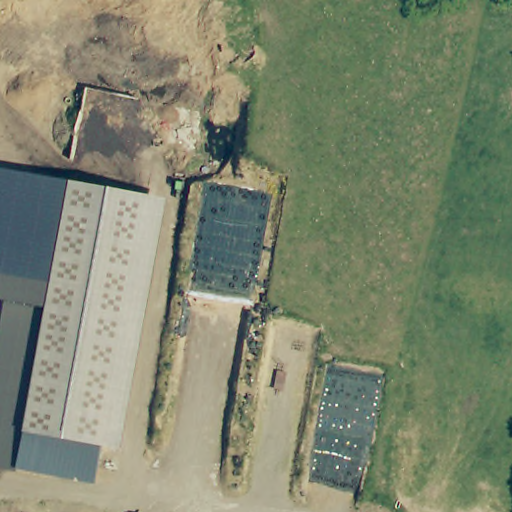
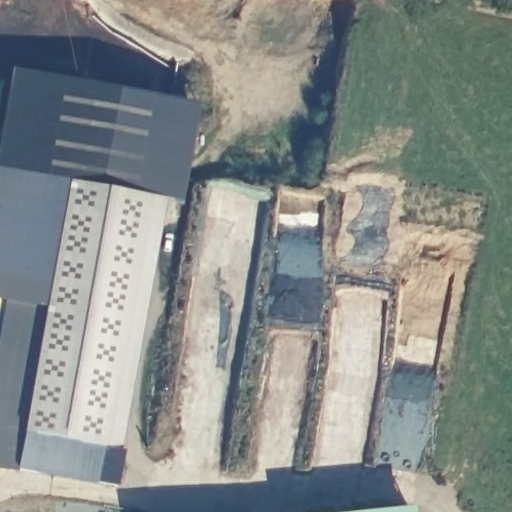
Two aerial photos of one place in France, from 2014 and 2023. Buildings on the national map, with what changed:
new [(200,104),(184,202),(168,199),(0,169),(0,135),(12,70),(200,104)]
unchanged [(104,448),(96,485),(16,471),(15,473),(0,470),(0,169),(168,199),(121,450),(104,448)]

